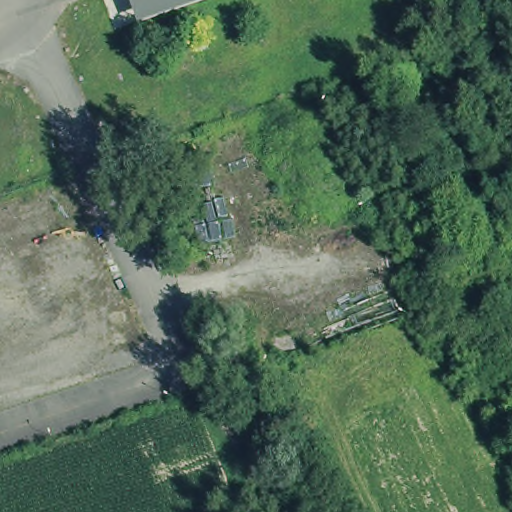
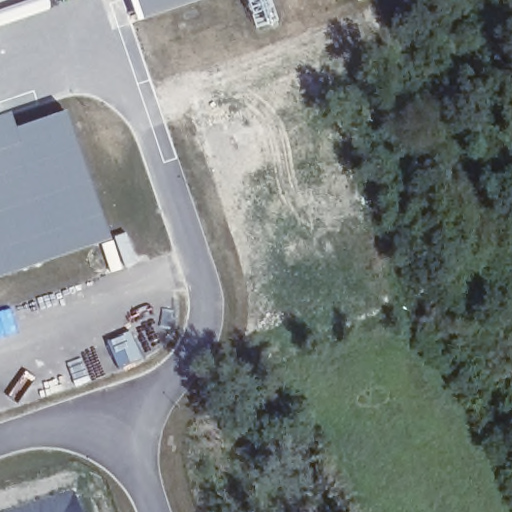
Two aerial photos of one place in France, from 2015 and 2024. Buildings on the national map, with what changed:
unchanged [(139,20),(132,0),(197,0),(139,20)]
new [(12,114),(17,127),(67,111),(85,168),(112,239),(0,277),(0,117),(12,114)]
new [(137,261),(124,267),(112,239),(126,232),(137,261)]

